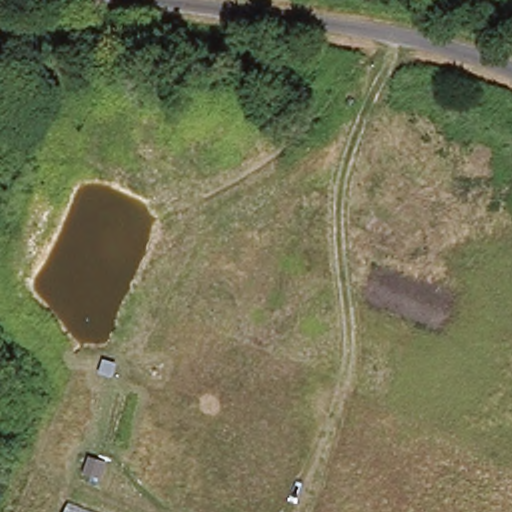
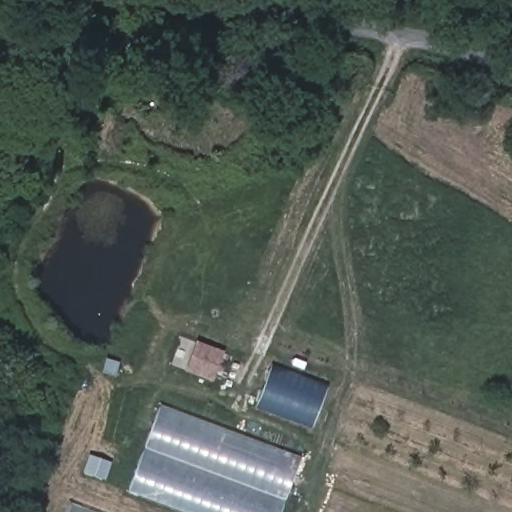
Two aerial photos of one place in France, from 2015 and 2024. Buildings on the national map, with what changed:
new [(184,371),(197,341),(224,352),(213,382),(184,371)]
new [(273,366),(327,384),(311,428),(257,409),(273,366)]
new [(281,512),(187,512),(129,490),(161,405),(303,456),(281,512)]
unchanged [(95,512),(68,512),(71,503),(95,512)]

